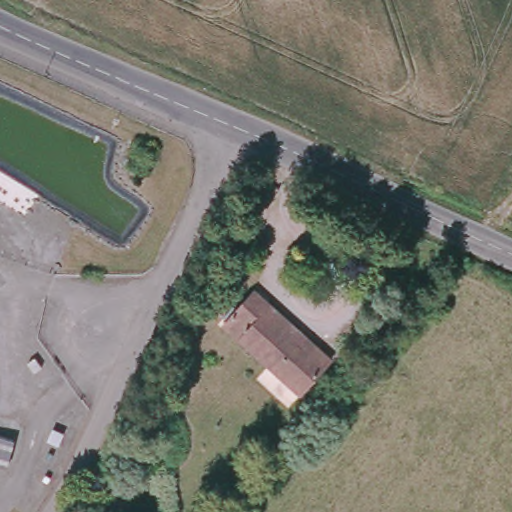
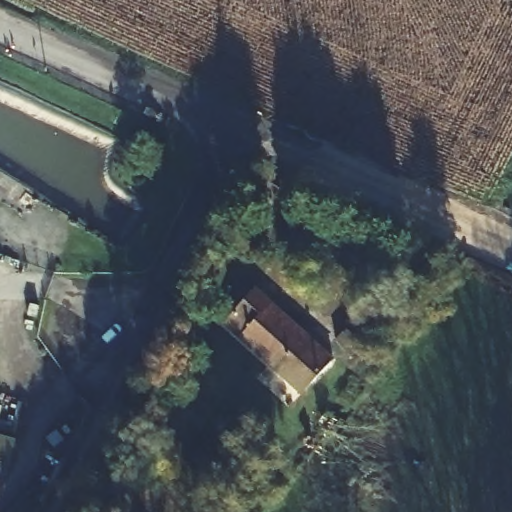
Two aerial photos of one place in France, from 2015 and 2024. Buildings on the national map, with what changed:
unchanged [(250,292),(332,359),(300,394),(222,326),(250,292)]

